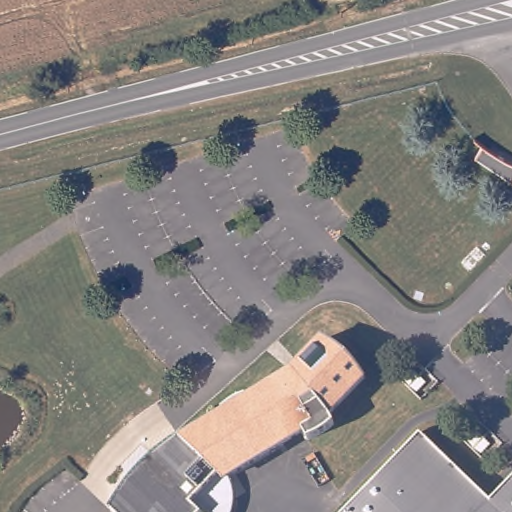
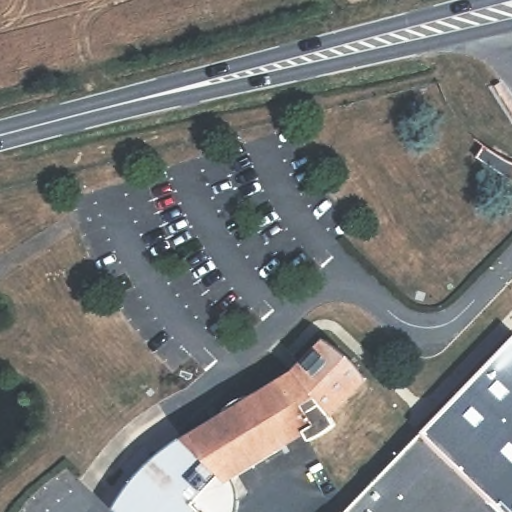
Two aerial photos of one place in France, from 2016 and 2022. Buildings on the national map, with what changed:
unchanged [(512,167),(512,184),(511,184),(471,156),(478,145),(512,167)]
unchanged [(232,409),(229,403),(254,389),(258,393),(299,368),(332,334),(346,341),(357,351),(366,362),(371,375),(333,410),(338,421),(314,437),(308,429),(265,455),(222,415),(232,409)]
new [(512,338),(512,481),(496,497),(426,427),(512,338)]
unchanged [(122,507),(187,432),(194,433),(222,415),(265,455),(235,472),(233,467),(228,465),(224,465),(197,495),(214,512),(127,512),(122,507)]
unchanged [(496,497),(512,481),(512,512),(342,512),(426,427),(496,497)]

